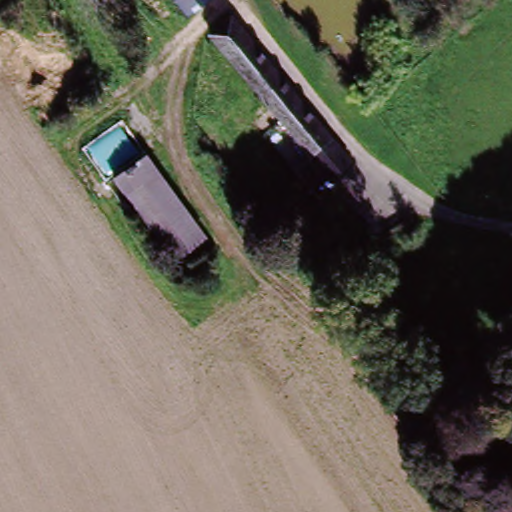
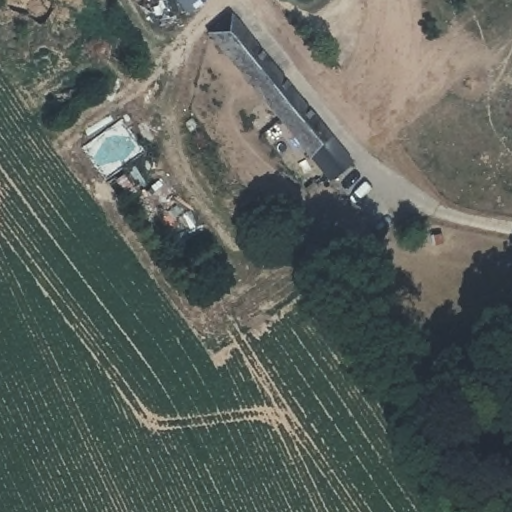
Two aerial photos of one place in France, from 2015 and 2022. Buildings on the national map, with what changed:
unchanged [(186,0),(200,0),(191,7),(186,0)]
unchanged [(329,184),(206,35),(229,16),(350,166),(329,184)]
unchanged [(212,237),(172,269),(107,178),(146,151),(212,237)]

